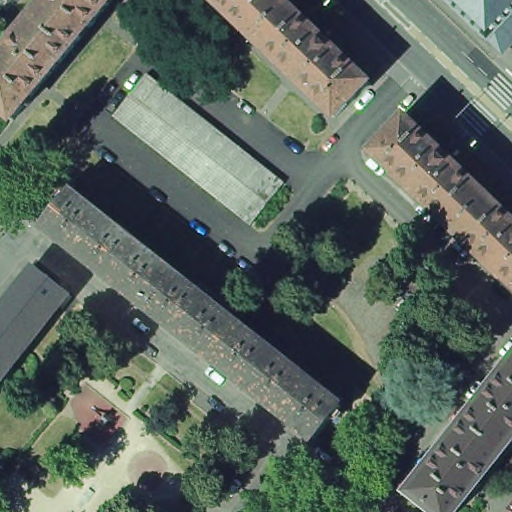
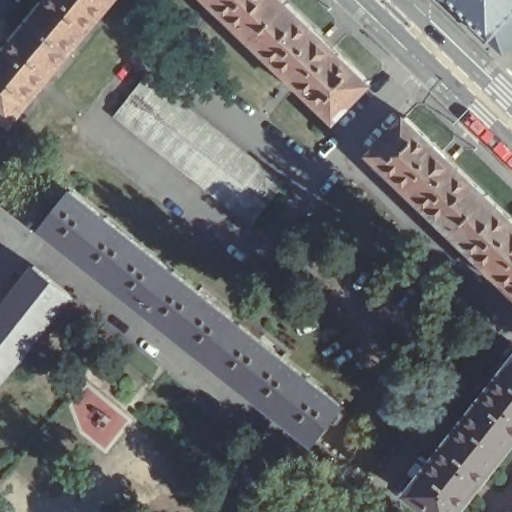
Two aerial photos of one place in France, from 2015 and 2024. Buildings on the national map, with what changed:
unchanged [(48,0),(116,0),(72,51),(34,18),(48,0)]
unchanged [(213,0),(284,0),(287,3),(254,39),(213,0)]
unchanged [(502,53),(488,40),(447,0),(512,0),(512,43),(502,53)]
unchanged [(370,82),(335,117),(254,39),(287,3),(370,82)]
unchanged [(0,109),(0,57),(34,18),(72,51),(13,120),(0,109)]
unchanged [(137,135),(126,126),(114,116),(130,95),(147,74),(160,83),(170,92),(182,101),(194,110),(205,119),(216,128),(227,137),(239,146),(250,155),(262,164),(272,173),(285,183),(268,204),(252,225),(239,215),(228,206),(217,197),(205,188),(194,179),(182,170),(172,162),(160,153),(149,143),(137,135)]
unchanged [(487,195),(454,230),(372,152),(405,116),(487,195)]
unchanged [(117,280),(87,256),(77,248),(48,225),(75,190),(144,244),(117,280)]
unchanged [(512,218),(512,286),(454,230),(487,195),(512,218)]
unchanged [(184,333),(117,280),(144,244),(212,298),(184,333)]
unchanged [(40,266),(75,294),(40,338),(5,310),(40,266)]
unchanged [(279,351),(252,386),(184,333),(212,298),(279,351)]
unchanged [(40,338),(0,388),(0,316),(5,310),(40,338)]
unchanged [(252,386),(279,351),(347,405),(320,441),(252,386)]
unchanged [(510,451),(469,420),(512,366),(512,448),(510,451)]
unchanged [(461,512),(439,512),(412,491),(469,420),(510,451),(461,512)]

